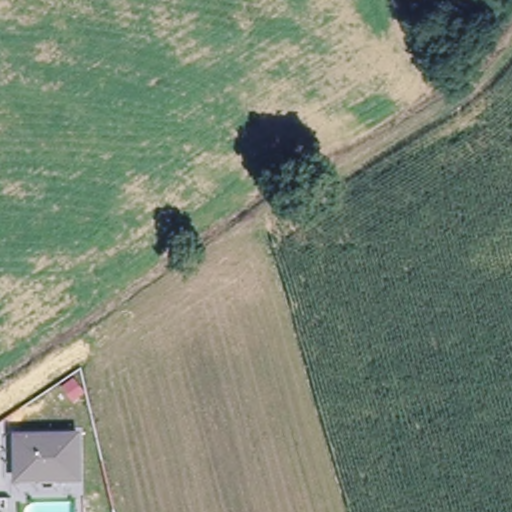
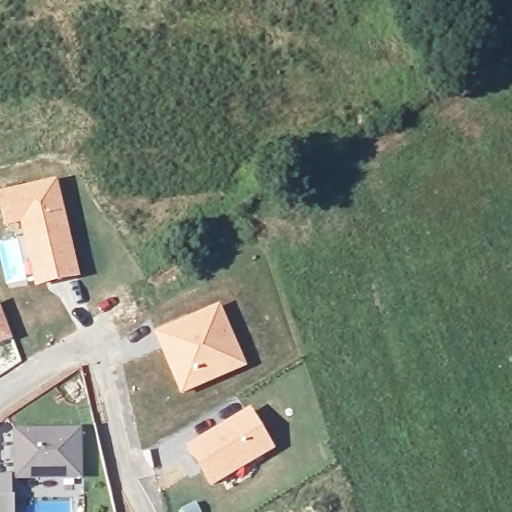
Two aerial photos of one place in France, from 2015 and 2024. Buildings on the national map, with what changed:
new [(58,178),(81,277),(35,288),(18,224),(5,227),(0,211),(0,194),(58,178)]
new [(1,304),(12,337),(0,342),(0,305),(1,304)]
new [(221,305),(248,366),(180,396),(154,333),(221,305)]
new [(252,408),(276,449),(210,487),(185,447),(252,408)]
unchanged [(80,428),(81,478),(14,480),(13,428),(80,428)]

